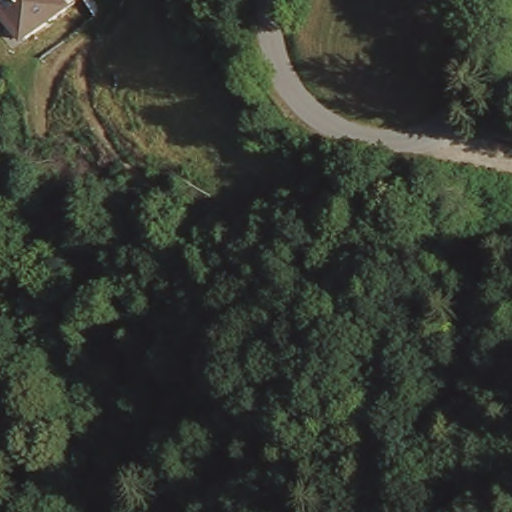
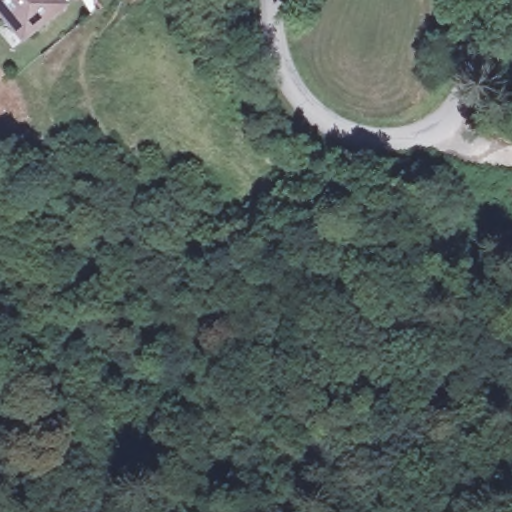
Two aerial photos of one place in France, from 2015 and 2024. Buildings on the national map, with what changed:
unchanged [(71,0),(65,4),(64,6),(20,34),(0,6),(0,0),(71,0)]

